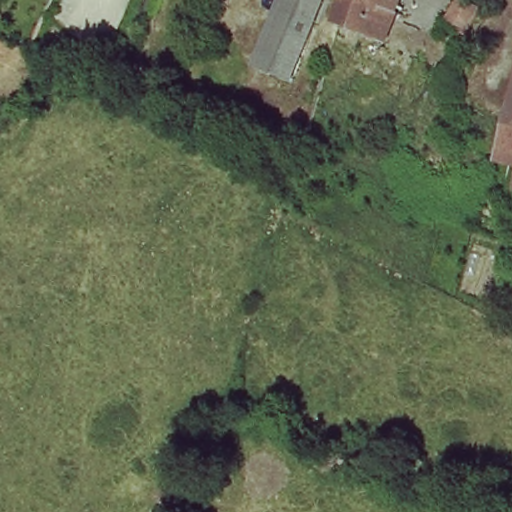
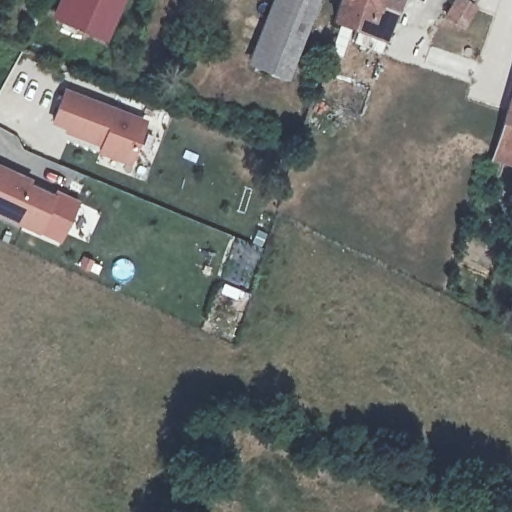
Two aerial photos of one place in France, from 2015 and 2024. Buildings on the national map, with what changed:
new [(50,16),(57,0),(123,0),(105,42),(50,16)]
unchanged [(255,68),(278,0),(311,0),(285,79),(255,68)]
unchanged [(386,33),(341,17),(346,0),(390,0),(389,5),(394,6),(386,33)]
unchanged [(462,0),(470,0),(482,6),(467,29),(450,18),(462,0)]
new [(64,133),(67,129),(51,123),(64,88),(146,120),(129,165),(100,153),(102,146),(64,133)]
unchanged [(499,137),(512,92),(512,155),(495,149),(499,137)]
new [(33,185),(56,195),(38,235),(0,217),(0,164),(36,180),(33,185)]

